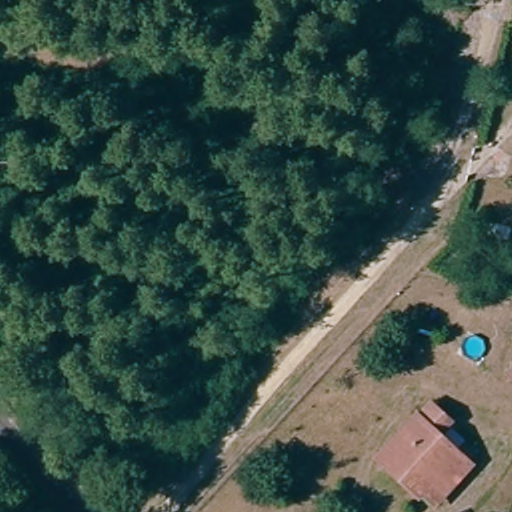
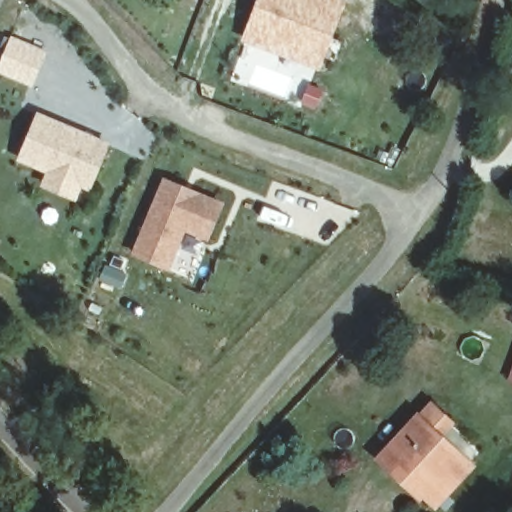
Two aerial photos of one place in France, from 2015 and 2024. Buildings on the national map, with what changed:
new [(339,0),(322,54),(319,64),(247,39),(250,30),(260,0),(339,0)]
new [(47,50),(33,86),(0,73),(0,62),(11,35),(47,50)]
new [(37,110),(111,140),(90,192),(82,188),(76,200),(40,186),(45,172),(17,160),(37,110)]
new [(223,203),(208,240),(186,232),(169,272),(130,256),(163,176),(223,203)]
unchanged [(444,439),(478,466),(436,511),(374,459),(430,402),(457,424),(444,439)]

